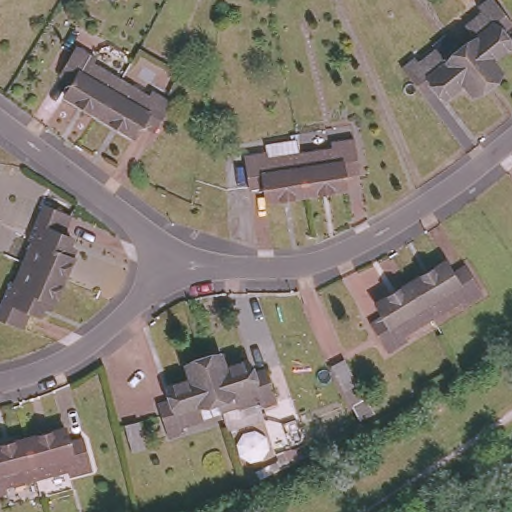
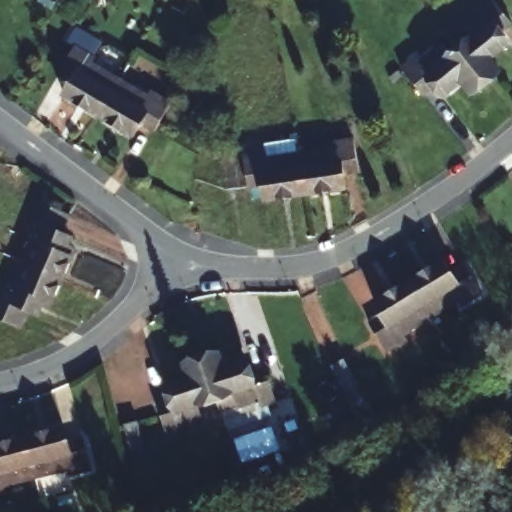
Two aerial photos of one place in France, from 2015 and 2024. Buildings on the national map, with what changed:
unchanged [(465,34),(480,21),(476,16),(490,5),(512,31),(499,41),(508,53),(491,66),(500,79),(486,90),(460,58),(474,46),(465,34)]
unchanged [(81,50),(102,61),(97,68),(125,84),(105,120),(71,99),(78,86),(64,79),(81,50)]
unchanged [(486,90),(472,101),(462,91),(446,104),(437,92),(424,103),(402,75),(416,64),(421,69),(437,56),(447,68),(460,58),(486,90)]
unchanged [(125,84),(154,101),(158,96),(178,108),(161,136),(146,128),(139,140),(105,120),(125,84)]
unchanged [(294,158),(327,153),(326,146),(350,141),(356,175),(339,177),(341,192),(300,198),(294,158)]
unchanged [(262,205),(260,190),(243,193),(239,161),(262,156),(264,163),(294,158),(300,198),(262,205)]
unchanged [(37,205),(65,216),(56,234),(65,238),(62,248),(67,250),(65,257),(67,258),(57,280),(49,276),(17,263),(26,242),(22,240),(37,205)]
unchanged [(444,255),(451,267),(466,259),(482,285),(462,298),(459,294),(431,310),(410,275),(444,255)]
unchanged [(47,300),(44,308),(37,305),(33,314),(25,310),(16,329),(0,323),(0,292),(5,282),(9,283),(17,263),(49,276),(57,280),(49,300),(47,300)]
unchanged [(431,310),(405,326),(408,331),(387,344),(371,317),(384,309),(376,296),(410,275),(431,310)]
unchanged [(202,359),(220,354),(224,367),(246,361),(250,374),(264,370),(275,403),(260,408),(257,401),(237,407),(232,393),(215,399),(202,359)]
unchanged [(185,364),(202,359),(215,399),(198,404),(202,416),(181,424),(182,432),(167,437),(157,403),(171,399),(167,385),(190,378),(185,364)]
unchanged [(342,359),(364,398),(350,405),(330,365),(342,359)]
unchanged [(136,421),(142,446),(131,450),(124,425),(136,421)]
unchanged [(26,443),(25,438),(62,428),(66,442),(82,438),(91,470),(67,476),(66,471),(35,479),(26,443)]
unchanged [(0,494),(0,444),(25,438),(26,443),(35,479),(3,487),(5,493),(0,494)]

